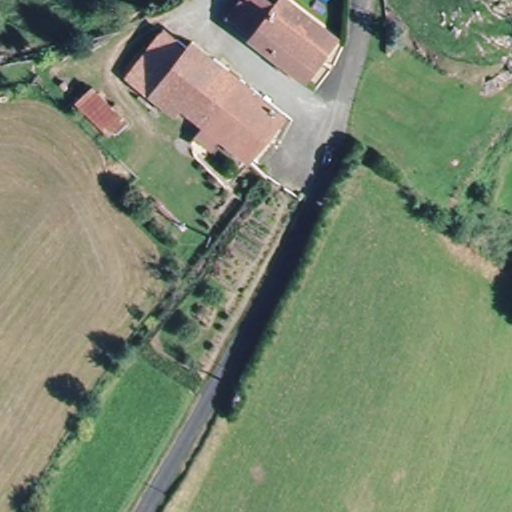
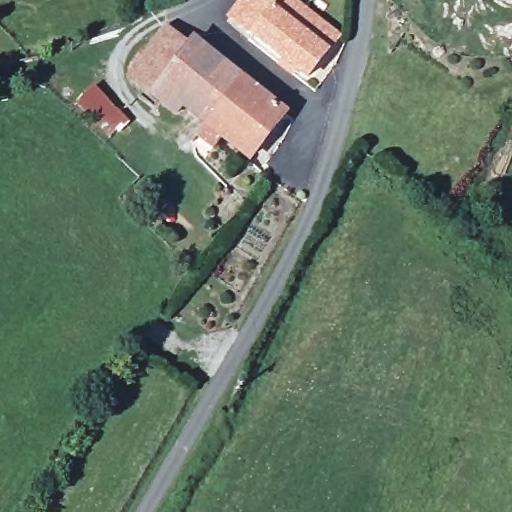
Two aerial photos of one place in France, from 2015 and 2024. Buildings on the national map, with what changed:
unchanged [(291,0),(337,33),(307,73),(228,17),(241,0),(278,0),(278,1),(279,0),(291,0)]
unchanged [(161,27),(186,45),(191,44),(156,95),(130,79),(145,55),(161,27)]
unchanged [(208,134),(217,124),(188,104),(181,110),(156,95),(191,44),(195,38),(198,42),(291,107),(292,110),(260,153),(231,133),(222,145),(208,134)]
unchanged [(113,140),(80,104),(98,86),(133,122),(113,140)]

